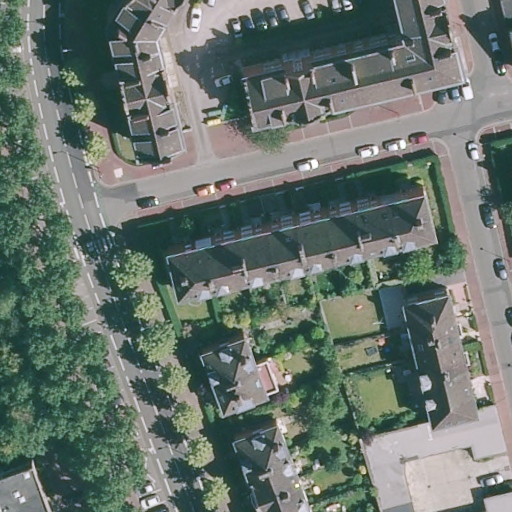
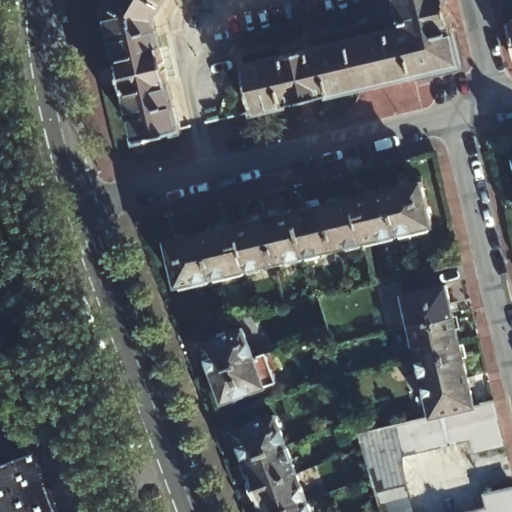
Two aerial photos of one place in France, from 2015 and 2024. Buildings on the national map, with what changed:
unchanged [(178,132),(171,134),(134,143),(103,12),(111,0),(164,0),(151,21),(178,132)]
unchanged [(318,51),(362,40),(405,30),(399,8),(397,0),(447,0),(455,33),(462,66),(446,69),(423,75),(398,81),(351,92),(280,109),(255,115),(243,69),(318,51)]
unchanged [(505,26),(501,10),(498,0),(512,0),(512,57),(505,26)]
unchanged [(388,191),(422,182),(433,226),(403,233),(398,235),(388,191)]
unchanged [(398,235),(364,243),(353,199),(388,191),(398,235)]
unchanged [(348,200),(353,199),(364,243),(350,246),(335,250),(325,206),(348,200)]
unchanged [(325,206),(335,250),(318,254),(305,257),(295,213),(325,206)]
unchanged [(265,220),(276,217),(295,213),(305,257),(287,261),(276,264),(265,220)]
unchanged [(276,264),(254,269),(247,270),(238,236),(236,227),(265,220),(276,264)]
unchanged [(238,236),(247,270),(218,277),(213,279),(202,235),(236,227),(238,236)]
unchanged [(213,279),(178,287),(168,243),(202,235),(213,279)]
unchanged [(403,297),(447,287),(454,316),(413,326),(410,326),(403,297)]
unchanged [(410,326),(413,326),(454,316),(461,346),(450,349),(417,356),(410,326)]
unchanged [(202,347),(244,331),(255,360),(213,376),(202,347)]
unchanged [(382,508),(381,506),(377,492),(373,479),(369,464),(365,450),(360,435),(396,427),(398,426),(410,423),(424,420),(432,418),(417,356),(450,349),(461,346),(476,407),(495,403),(499,418),(502,432),(506,446),(475,454),(472,440),(459,443),(445,446),(432,450),(431,450),(417,453),(403,457),(405,471),(408,485),(411,499),(414,512),(383,512),(382,508)]
unchanged [(255,360),(266,355),(277,384),(224,405),(213,376),(255,360)]
unchanged [(235,434),(277,417),(288,447),(245,463),(235,434)]
unchanged [(245,463),(288,447),(298,475),(278,483),(263,489),(256,491),(245,463)]
unchanged [(0,467),(29,456),(50,512),(0,512),(0,467)]
unchanged [(262,506),(256,491),(263,489),(278,483),(298,475),(302,485),(309,504),(289,511),(288,512),(264,512),(262,506)]
unchanged [(490,510),(489,508),(486,496),(512,490),(512,512),(482,512),(490,510)]
unchanged [(289,511),(309,504),(312,512),(288,512),(289,511)]

